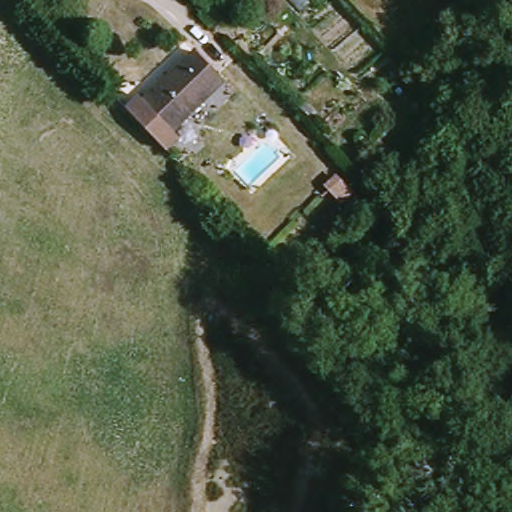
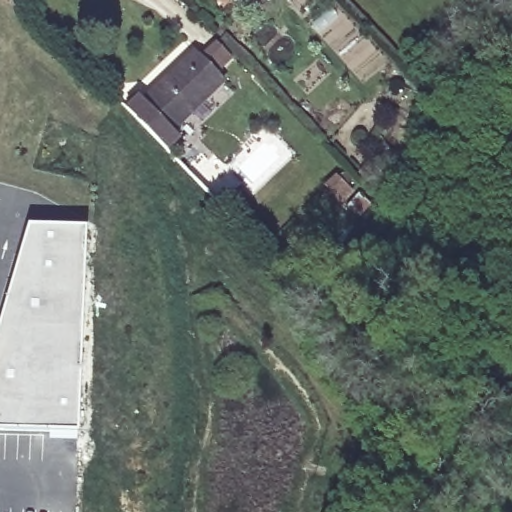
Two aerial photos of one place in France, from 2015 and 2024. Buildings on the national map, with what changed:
unchanged [(144,91),(148,95),(199,48),(227,79),(177,126),(184,134),(171,145),(131,103),(144,91)]
new [(85,229),(77,435),(0,432),(0,319),(27,227),(85,229)]

